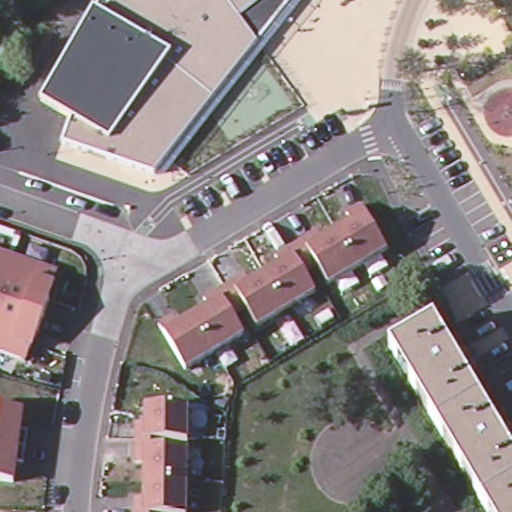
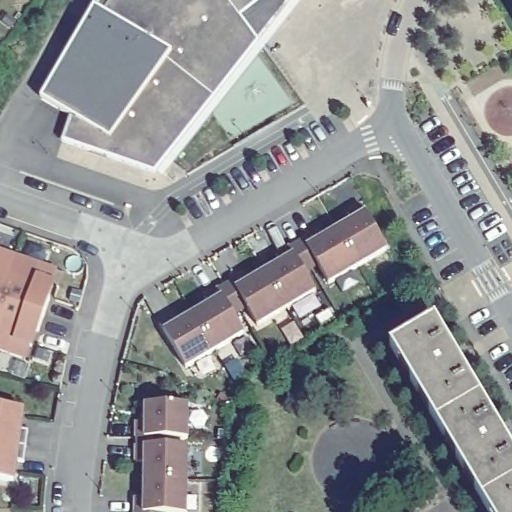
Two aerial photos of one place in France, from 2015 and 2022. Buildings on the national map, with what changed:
unchanged [(248,11),(242,16),(245,22),(240,31),(258,42),(158,172),(65,140),(72,113),(50,100),(44,96),(95,6),(99,0),(261,0),(248,11)]
unchanged [(328,287),(307,244),(366,212),(390,251),(328,287)]
unchanged [(28,358),(0,349),(0,249),(59,271),(28,358)]
unchanged [(257,328),(235,287),(293,255),(316,293),(257,328)]
unchanged [(185,367),(164,326),(223,297),(243,332),(185,367)]
unchanged [(435,425),(388,348),(430,323),(450,356),(454,354),(462,366),(457,368),(476,400),(435,425)]
unchanged [(435,425),(476,400),(497,434),(501,432),(507,442),(503,445),(512,460),(512,484),(481,502),(435,425)]
unchanged [(188,405),(186,512),(142,512),(144,404),(188,405)]
unchanged [(13,483),(0,481),(0,407),(25,411),(13,483)]
unchanged [(512,484),(512,512),(487,512),(481,502),(512,484)]

